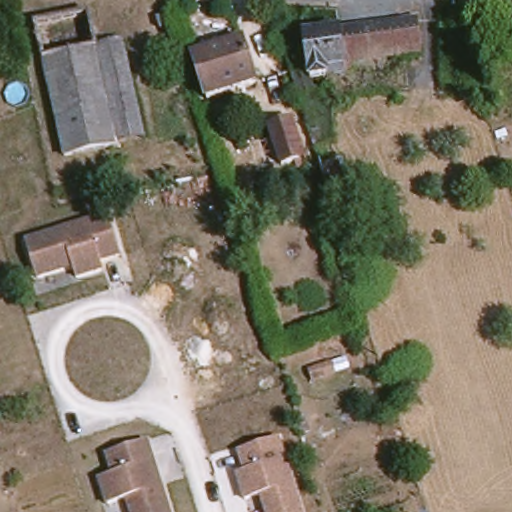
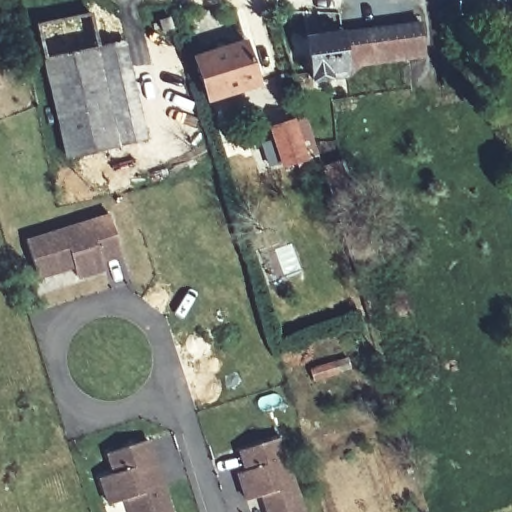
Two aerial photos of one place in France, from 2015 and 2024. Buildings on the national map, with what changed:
unchanged [(339,71),(339,80),(308,84),(305,41),(415,26),(419,50),(359,60),(357,69),(339,71)]
unchanged [(206,101),(192,59),(243,43),(257,85),(206,101)]
unchanged [(117,148),(97,49),(123,44),(144,143),(117,148)]
unchanged [(97,49),(117,148),(60,157),(39,63),(97,49)]
unchanged [(290,161),(265,169),(255,131),(285,122),(297,166),(292,168),(290,161)]
unchanged [(315,177),(312,163),(330,159),(342,199),(323,203),(315,177)]
unchanged [(114,213),(126,254),(106,260),(109,269),(81,277),(76,260),(67,263),(69,269),(60,272),(41,277),(30,240),(49,234),(114,213)]
unchanged [(327,365),(330,374),(307,381),(305,372),(327,365)]
unchanged [(151,437),(174,512),(136,512),(131,496),(112,501),(104,474),(118,470),(112,450),(115,449),(151,437)]
unchanged [(270,495),(250,502),(242,474),(250,473),(244,452),(284,440),(306,512),(270,512),(268,504),(274,503),(270,495)]

